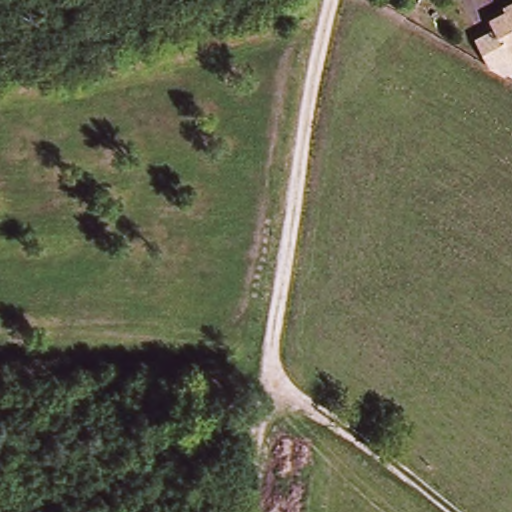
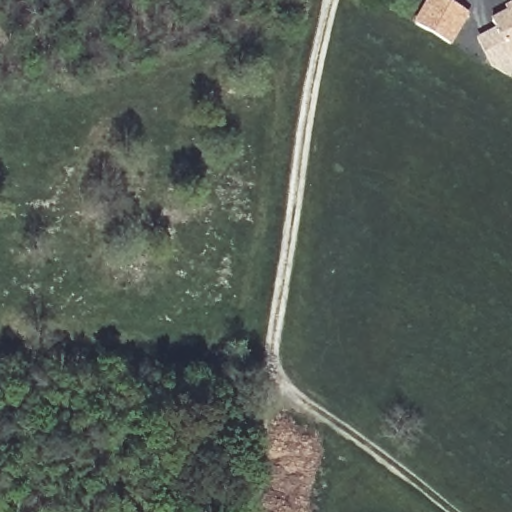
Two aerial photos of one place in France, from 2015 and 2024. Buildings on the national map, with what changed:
new [(448,0),(471,13),(453,45),(414,22),(427,0),(448,0)]
unchanged [(509,64),(494,38),(503,35),(494,21),(510,13),(508,9),(512,6),(512,66),(509,64)]

